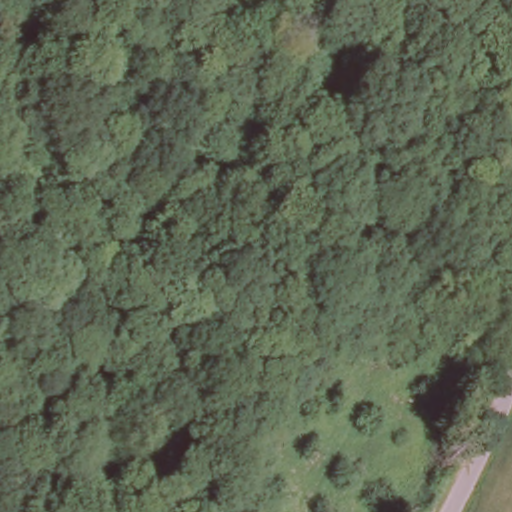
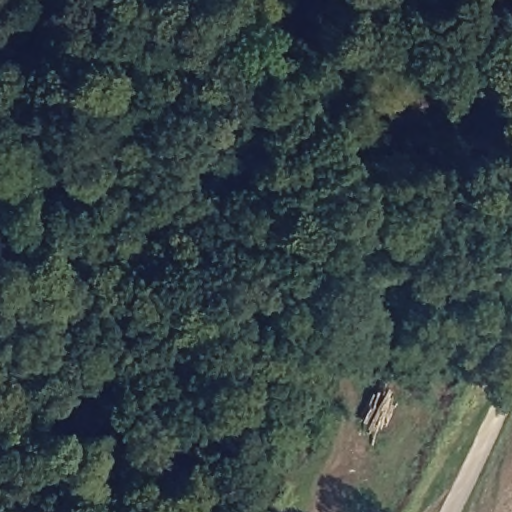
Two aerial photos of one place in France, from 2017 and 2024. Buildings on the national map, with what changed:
unchanged [(339,292),(353,298),(348,310),(335,304),(339,292)]

